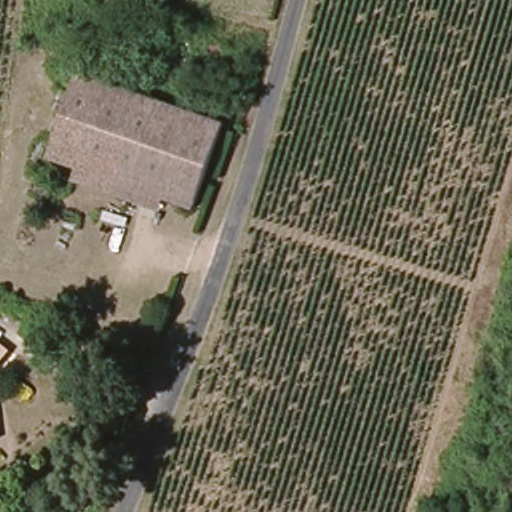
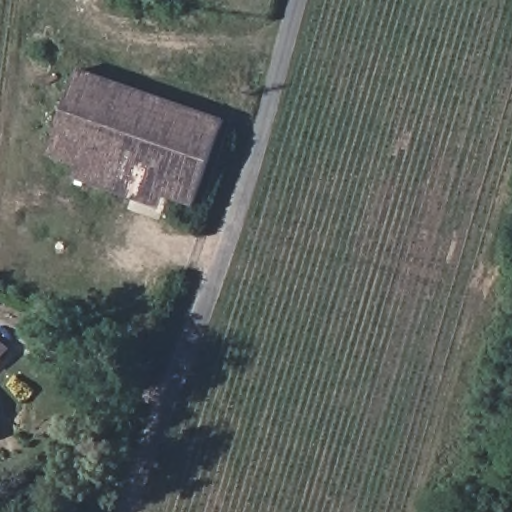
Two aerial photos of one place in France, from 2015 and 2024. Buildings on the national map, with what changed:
unchanged [(78,74),(227,116),(201,202),(53,160),(78,74)]
unchanged [(0,304),(0,301),(1,301),(0,304)]
unchanged [(0,365),(0,335),(14,345),(0,365)]

